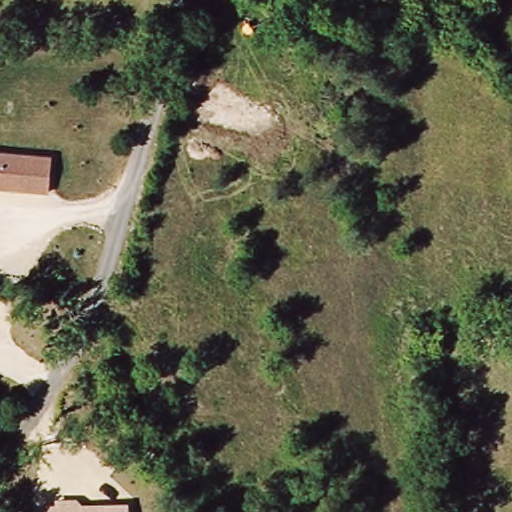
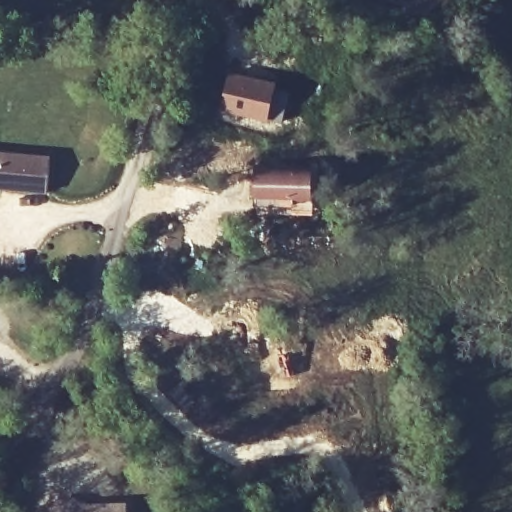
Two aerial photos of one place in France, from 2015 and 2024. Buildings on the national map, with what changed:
new [(277,83),(269,120),(219,110),(228,72),(277,83)]
unchanged [(51,187),(0,185),(0,149),(53,151),(51,187)]
new [(255,166),(313,167),(314,200),(314,214),(255,214),(255,199),(255,166)]
unchanged [(39,501),(56,501),(57,496),(78,496),(78,500),(126,499),(127,512),(39,512),(39,501)]

